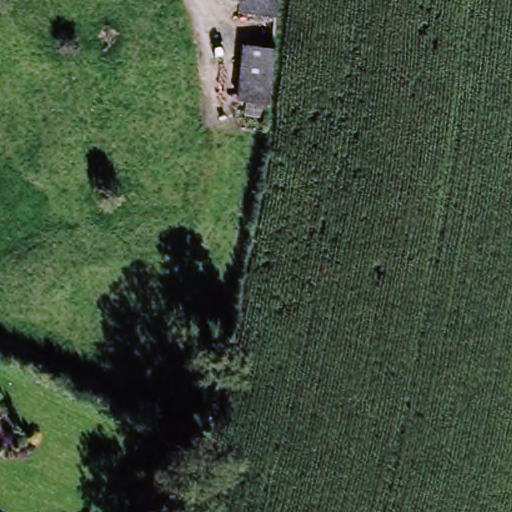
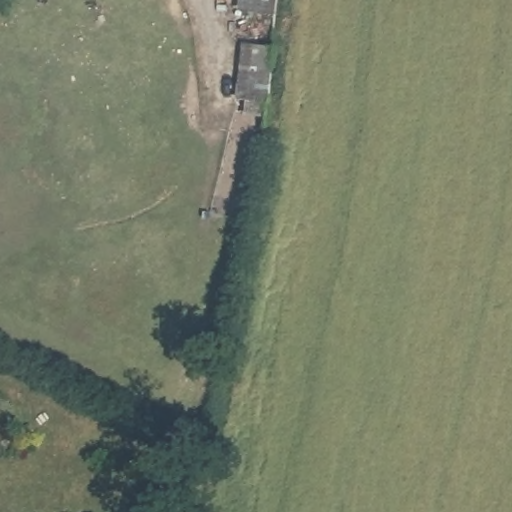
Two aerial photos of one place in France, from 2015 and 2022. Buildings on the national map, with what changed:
unchanged [(239,0),(271,0),(269,12),(238,7),(239,0)]
unchanged [(263,110),(236,105),(246,52),(272,56),(263,110)]

